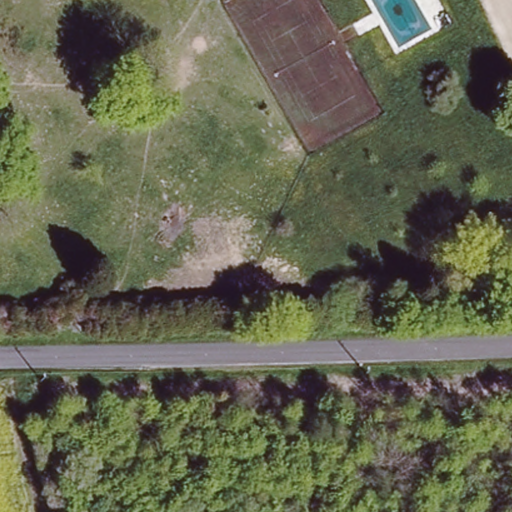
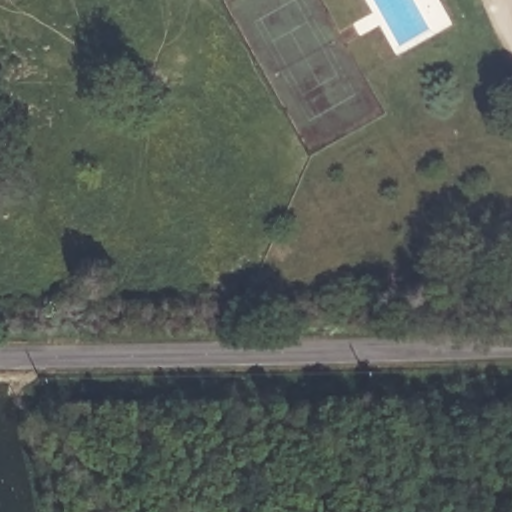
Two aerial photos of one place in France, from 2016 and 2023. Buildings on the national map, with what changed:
[]

